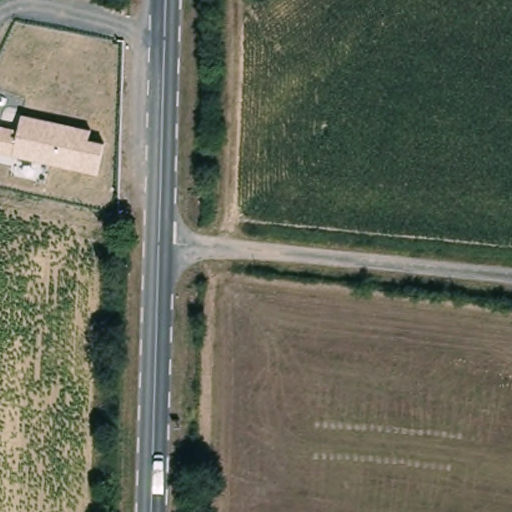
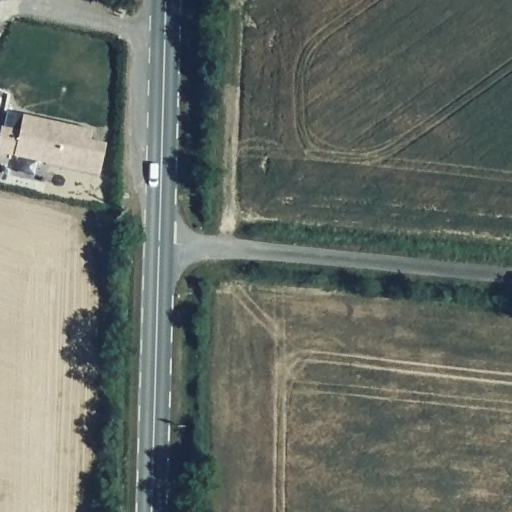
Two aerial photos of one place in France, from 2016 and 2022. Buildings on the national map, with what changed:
unchanged [(99,128),(95,146),(109,149),(103,174),(3,153),(9,125),(29,130),(33,114),(99,128)]

